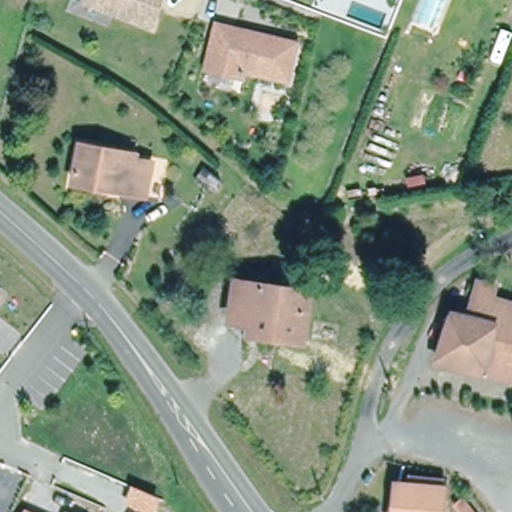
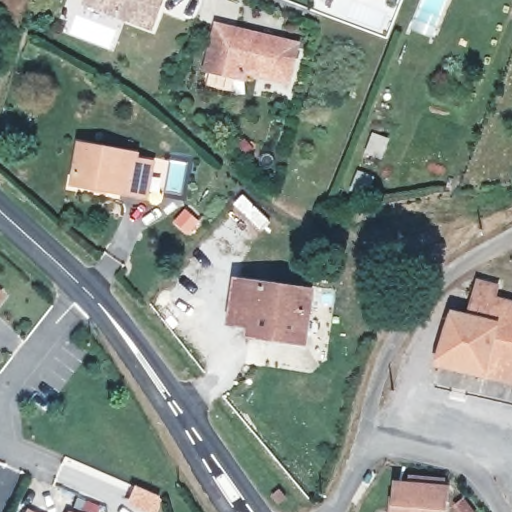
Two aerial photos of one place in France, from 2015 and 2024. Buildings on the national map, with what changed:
unchanged [(91,6),(93,0),(168,0),(157,30),(91,6)]
unchanged [(388,0),(386,5),(375,0),(388,0)]
unchanged [(221,22),(301,41),(293,79),(251,69),(245,91),(208,82),(221,22)]
unchanged [(76,182),(84,144),(137,154),(136,160),(153,162),(147,196),(76,182)]
unchanged [(470,311),(480,277),(496,281),(492,293),(512,298),(512,374),(441,357),(455,307),(470,311)]
unchanged [(239,283),(310,292),(303,340),(254,333),(255,326),(233,322),(239,283)]
unchanged [(399,486),(408,487),(409,476),(445,479),(445,489),(443,512),(396,512),(399,486)]
unchanged [(470,497),(480,512),(462,512),(457,506),(470,497)]

